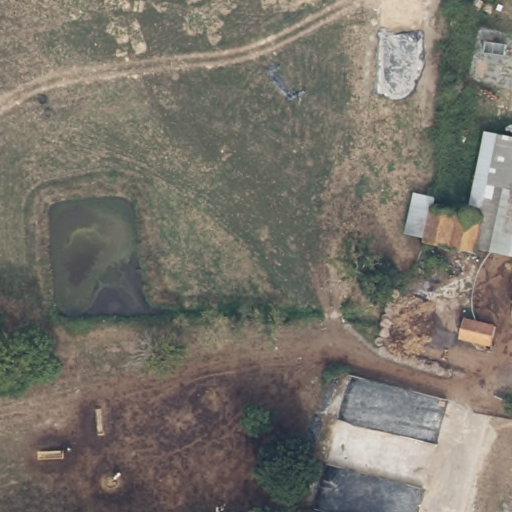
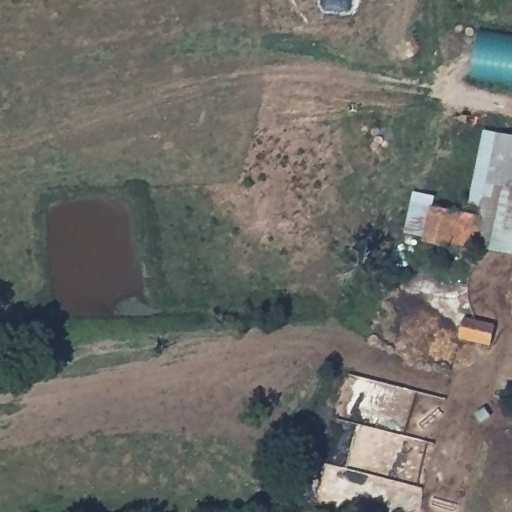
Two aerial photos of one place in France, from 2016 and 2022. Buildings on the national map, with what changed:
new [(512,37),(512,84),(471,78),(480,33),(512,37)]
unchanged [(512,134),(512,220),(483,212),(499,131),(512,134)]
unchanged [(473,253),(421,241),(431,198),(483,212),(475,245),(473,253)]
unchanged [(483,212),(512,220),(512,253),(475,245),(483,212)]
unchanged [(490,345),(482,343),(461,338),(465,323),(493,330),(490,345)]

